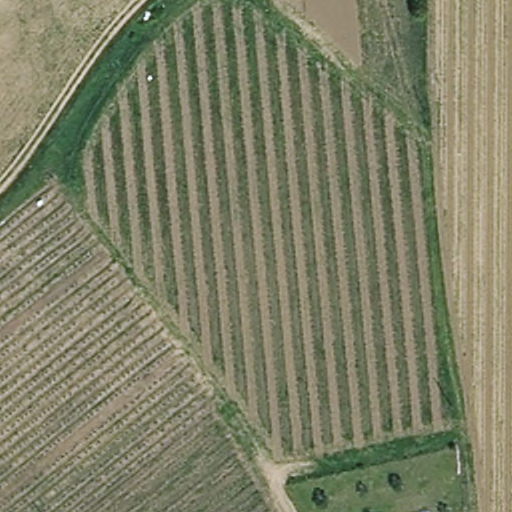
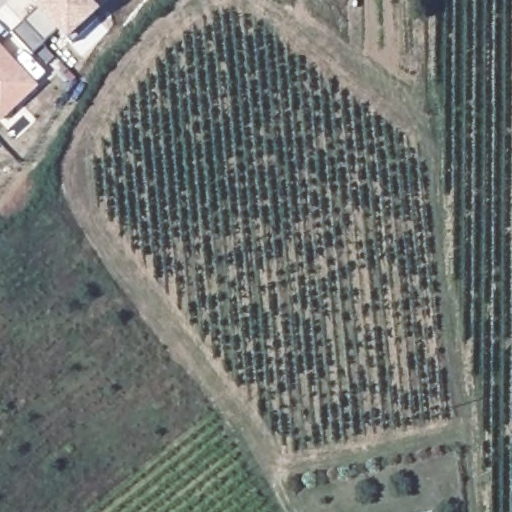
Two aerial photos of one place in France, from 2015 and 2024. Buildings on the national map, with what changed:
new [(56,31),(34,53),(14,32),(36,6),(43,0),(89,0),(100,10),(65,41),(56,31)]
new [(0,123),(0,45),(40,87),(0,123)]

